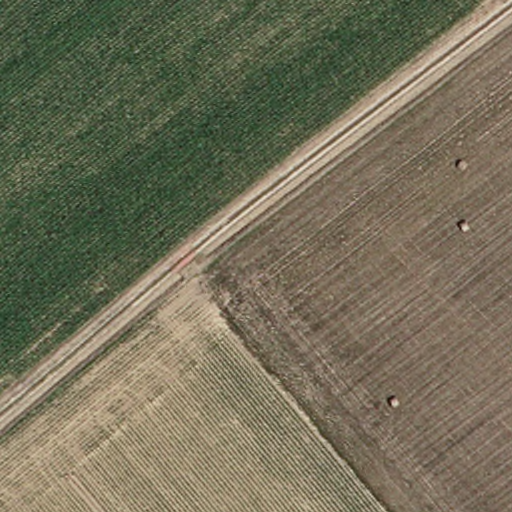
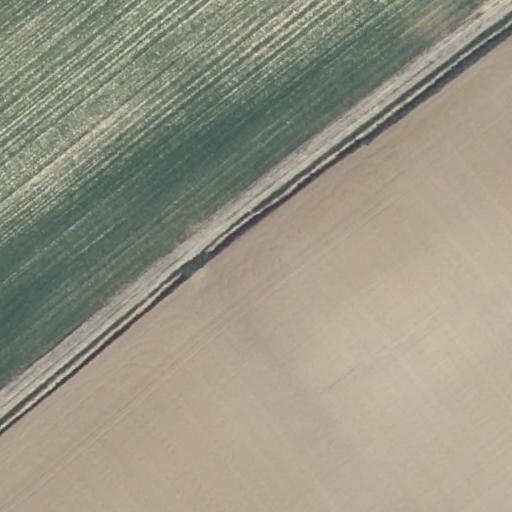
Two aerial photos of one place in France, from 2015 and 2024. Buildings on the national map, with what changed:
[]

